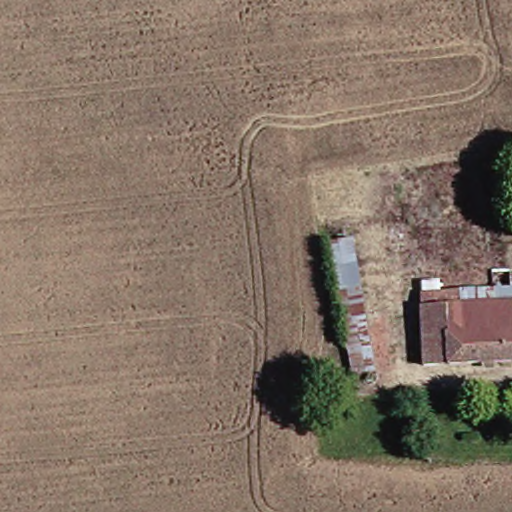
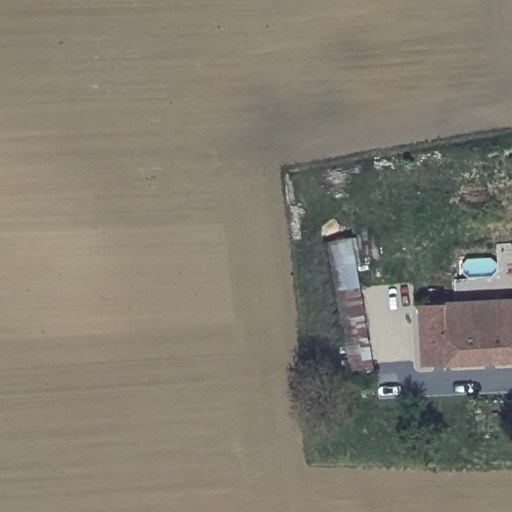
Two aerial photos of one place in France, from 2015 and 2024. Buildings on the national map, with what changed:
unchanged [(355,376),(334,239),(358,236),(380,371),(355,376)]
unchanged [(512,355),(433,365),(424,305),(512,293),(512,355)]

